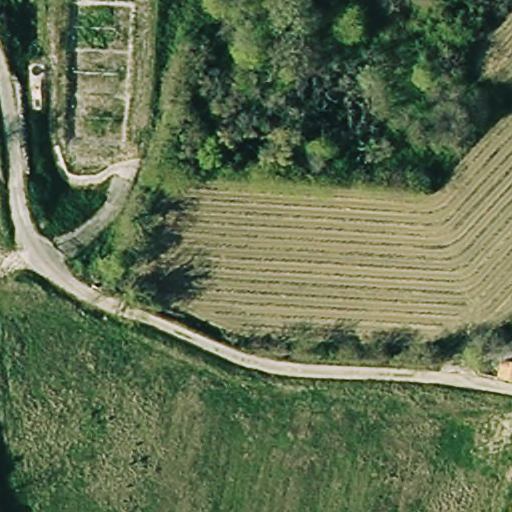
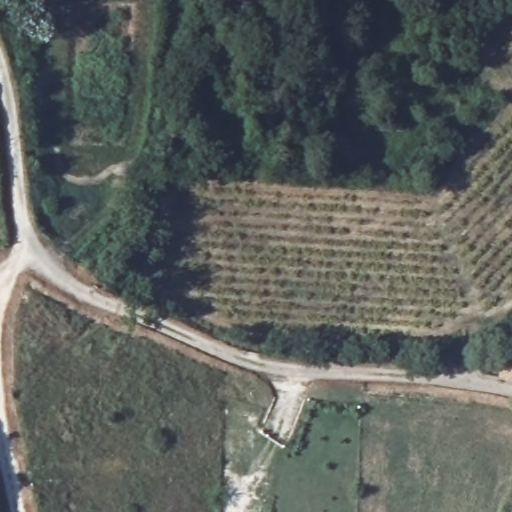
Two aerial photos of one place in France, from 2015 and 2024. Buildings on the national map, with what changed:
unchanged [(511,360),(512,360),(512,382),(507,381),(511,360)]

